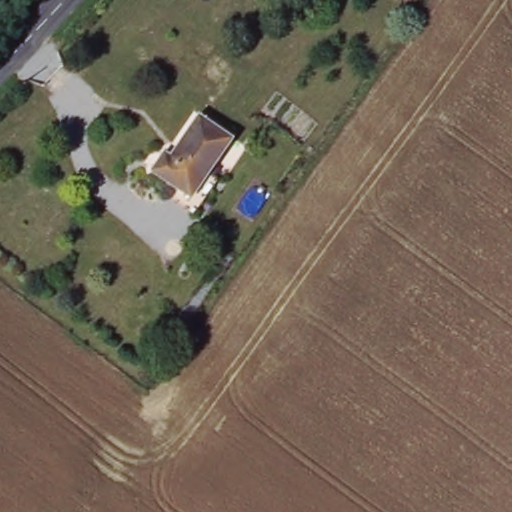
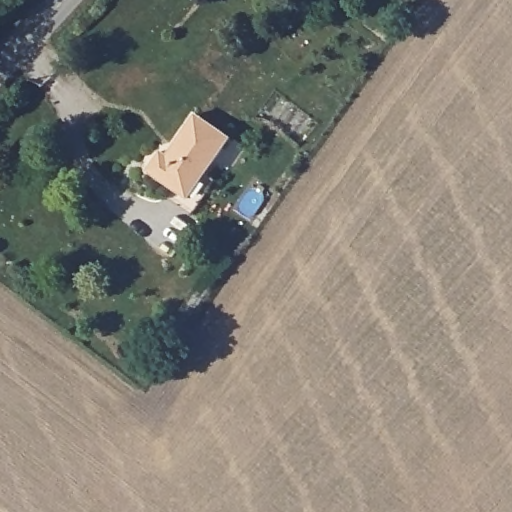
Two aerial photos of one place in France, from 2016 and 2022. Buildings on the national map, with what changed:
unchanged [(233,139),(192,199),(152,169),(165,155),(169,157),(198,114),(233,139)]

